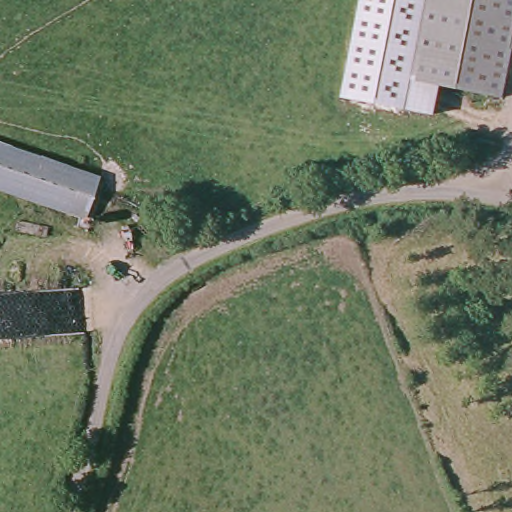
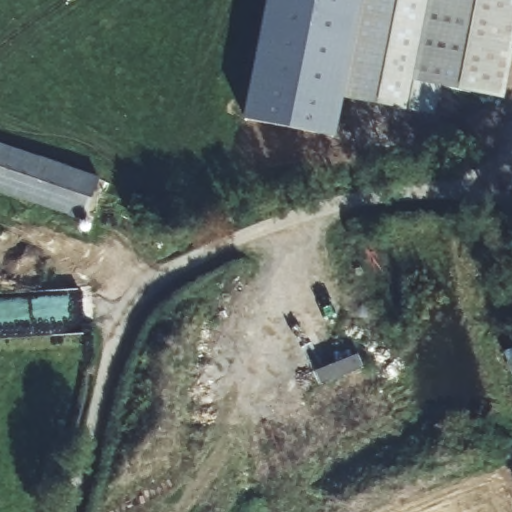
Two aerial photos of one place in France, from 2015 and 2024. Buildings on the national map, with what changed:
new [(267,0),(361,0),(342,98),(335,138),(244,119),(267,0)]
unchanged [(512,0),(512,57),(504,99),(440,86),(435,115),(342,98),(361,0),(512,0)]
unchanged [(81,219),(0,192),(0,140),(97,172),(81,219)]

